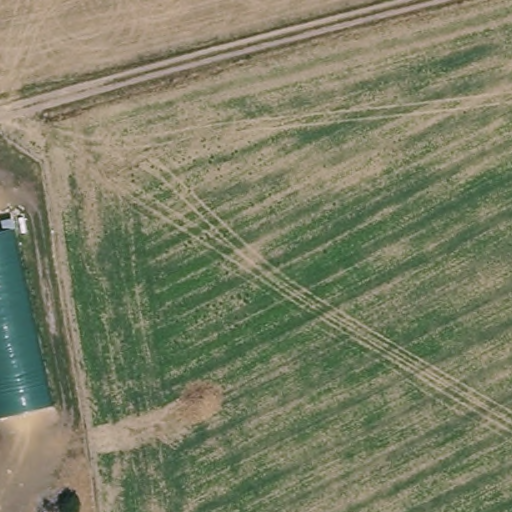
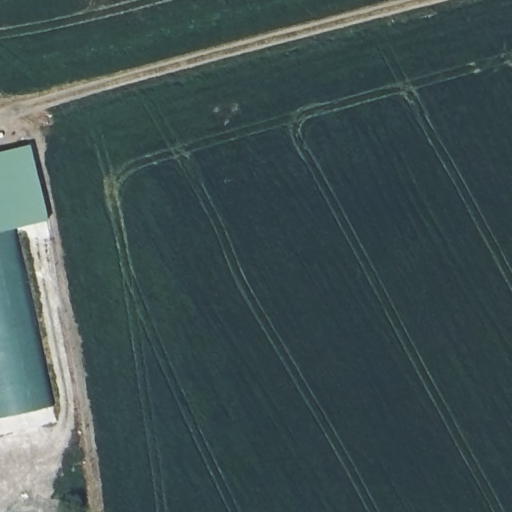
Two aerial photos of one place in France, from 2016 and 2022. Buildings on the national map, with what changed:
new [(0,151),(30,144),(48,221),(11,229),(0,232),(0,151)]
unchanged [(0,232),(11,229),(51,407),(1,417),(0,410),(0,232)]

